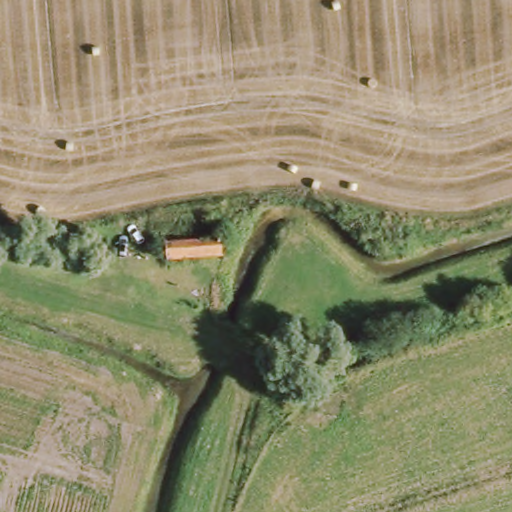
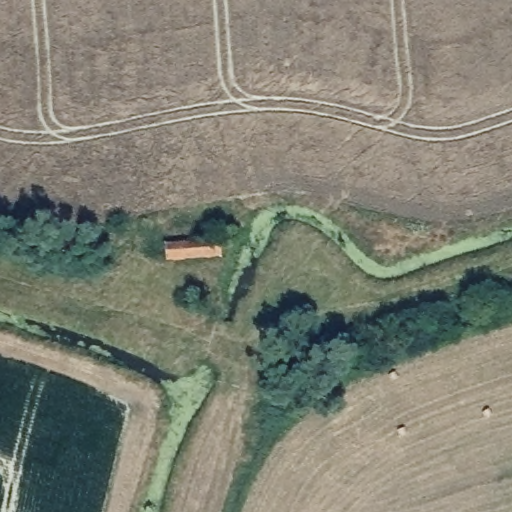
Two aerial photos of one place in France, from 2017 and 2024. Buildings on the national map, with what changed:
unchanged [(155,258),(157,245),(167,240),(194,240),(194,215),(218,215),(218,240),(220,260),(167,260),(155,258)]

